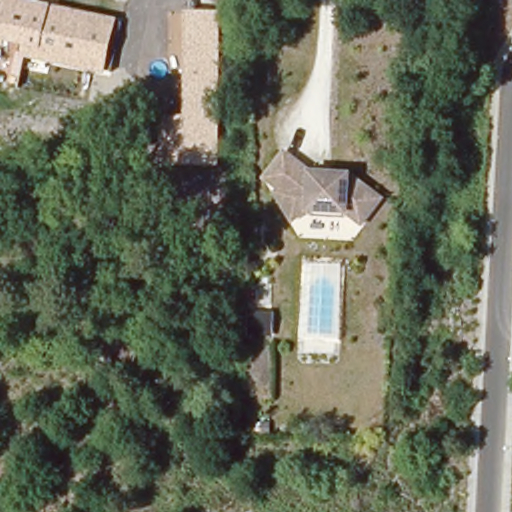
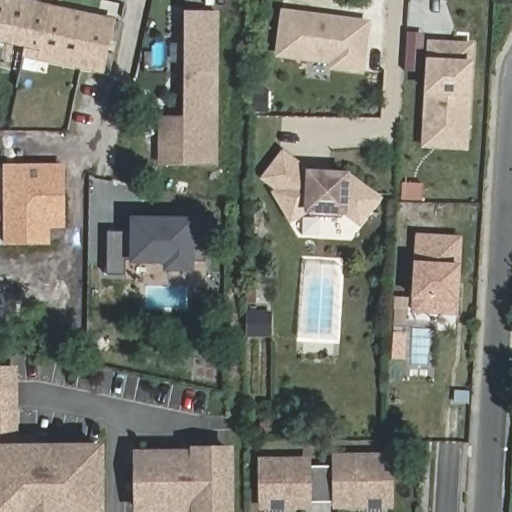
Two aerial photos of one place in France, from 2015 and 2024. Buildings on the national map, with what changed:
unchanged [(36,0),(50,3),(117,18),(106,74),(98,71),(108,25),(31,9),(24,43),(0,40),(0,0),(36,0)]
unchanged [(24,43),(31,9),(108,25),(98,71),(98,75),(21,59),(24,43)]
new [(339,19),(351,20),(369,22),(363,70),(333,66),(334,60),(280,54),(285,11),(339,19)]
unchanged [(219,17),(218,109),(211,109),(210,165),(165,164),(166,138),(183,139),(183,111),(189,106),(190,16),(219,17)]
new [(432,42),(449,44),(455,44),(474,45),(468,138),(467,148),(425,145),(427,121),(432,42)]
unchanged [(312,214),(299,226),(262,180),(291,152),(308,172),(354,174),(384,197),(362,226),(354,217),(312,214)]
new [(64,169),(65,227),(49,226),(49,243),(8,243),(8,169),(64,169)]
new [(136,232),(136,220),(143,220),(210,221),(209,262),(194,262),(194,270),(169,269),(170,262),(129,261),(129,276),(110,275),(111,232),(136,232)]
new [(420,235),(463,238),(458,313),(436,312),(415,310),(416,297),(420,235)]
new [(249,312),(276,313),(276,338),(249,337),(249,312)]
demolished [(85,362),(87,336),(135,339),(130,367),(85,362)]
new [(20,367),(20,389),(0,389),(0,367),(20,367)]
new [(20,397),(20,430),(20,436),(20,445),(29,445),(29,447),(72,447),(72,445),(107,445),(107,504),(107,512),(0,512),(0,397),(20,397)]
new [(155,507),(148,508),(148,452),(160,452),(160,467),(204,467),(204,460),(196,460),(196,451),(204,451),(204,448),(240,448),(240,501),(240,511),(207,511),(207,507),(192,507),(192,512),(155,512),(155,507)]
new [(392,504),(339,505),(339,502),(325,502),(325,465),(339,465),(339,457),(392,456),(392,504)]
new [(310,461),(310,466),(325,465),(325,502),(310,502),(310,505),(265,505),(265,461),(310,461)]

